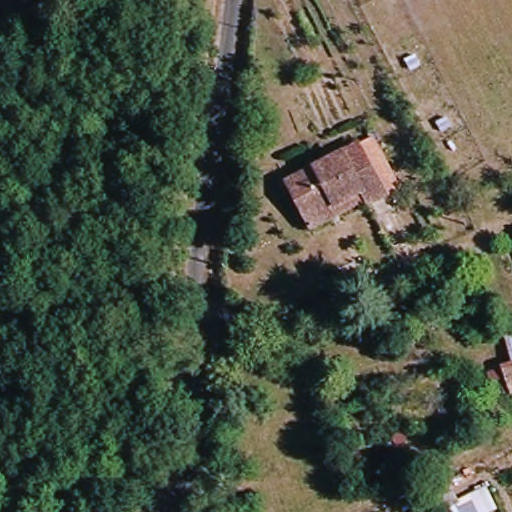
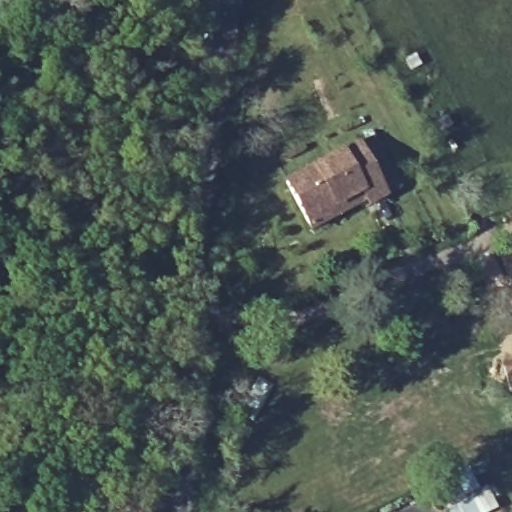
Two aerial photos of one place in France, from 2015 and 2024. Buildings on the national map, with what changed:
unchanged [(361,141),(385,204),(301,234),(277,171),(361,141)]
unchanged [(497,368),(508,365),(498,329),(512,325),(512,396),(502,399),(497,368)]

